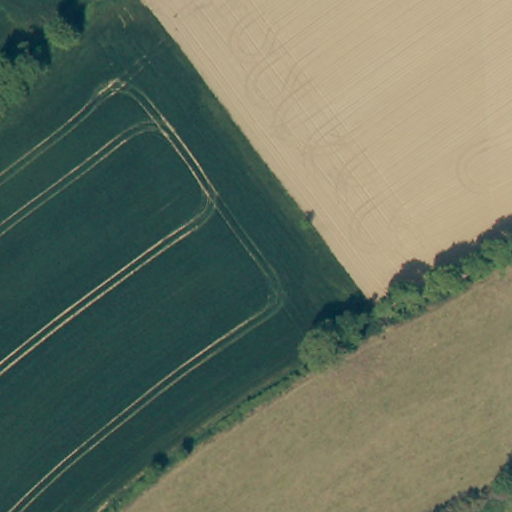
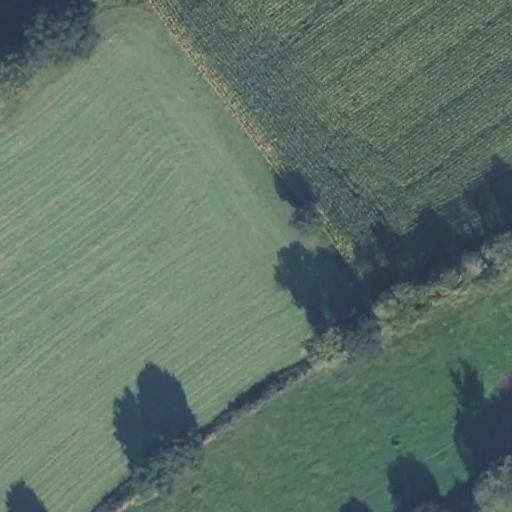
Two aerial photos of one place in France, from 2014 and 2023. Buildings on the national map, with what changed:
[]

